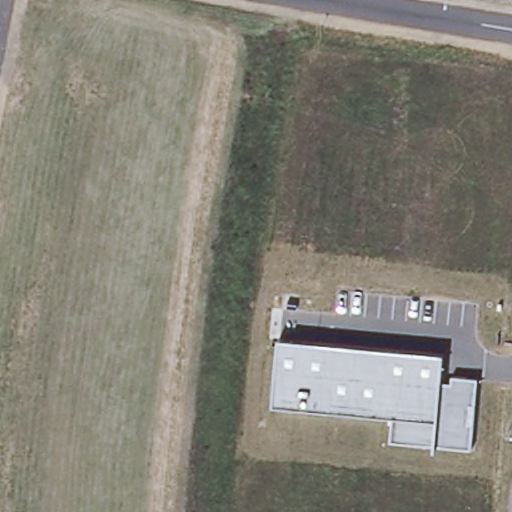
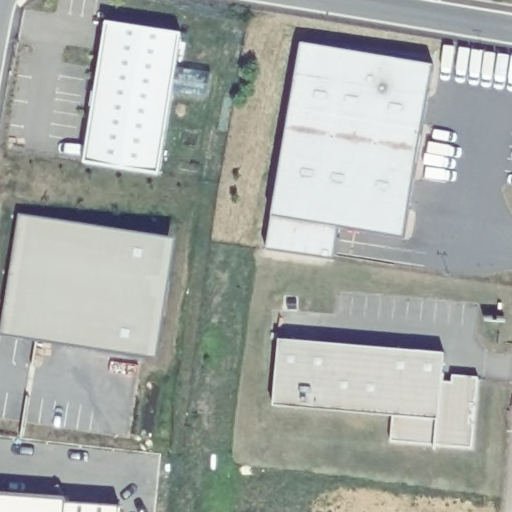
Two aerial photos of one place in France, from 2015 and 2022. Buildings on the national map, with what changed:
new [(105,23),(182,35),(158,175),(83,162),(105,23)]
new [(273,216),(303,44),(434,66),(405,238),(341,227),(335,260),(268,250),(273,216)]
new [(22,215),(177,242),(160,358),(2,332),(22,215)]
unchanged [(471,448),(393,441),(397,416),(273,406),(278,340),(444,354),(441,382),(451,383),(452,376),(478,379),(471,448)]
new [(63,503),(118,506),(118,512),(0,512),(0,492),(64,497),(63,503)]

